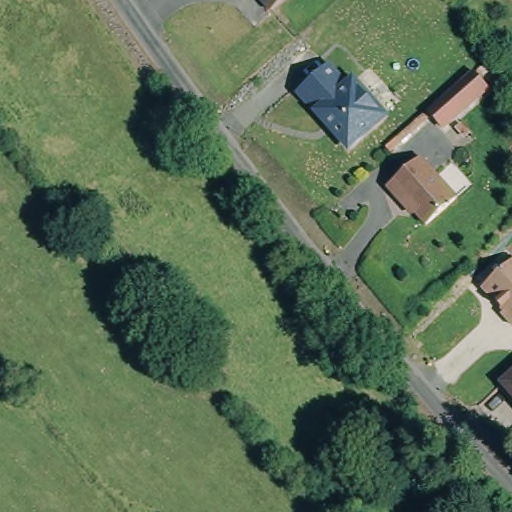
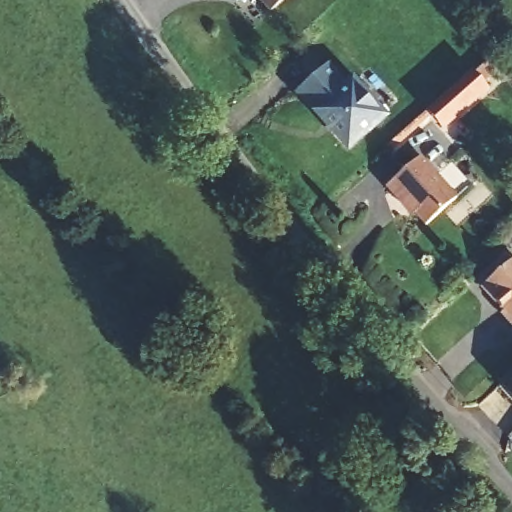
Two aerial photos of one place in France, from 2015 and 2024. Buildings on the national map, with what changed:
unchanged [(266,0),(288,0),(276,10),(266,0)]
unchanged [(324,63),(344,85),(350,80),(381,115),(346,145),(296,88),(324,63)]
unchanged [(467,68),(483,85),(439,125),(426,112),(385,150),(382,146),(423,109),(467,68)]
unchanged [(452,196),(422,221),(405,202),(400,205),(383,185),(417,156),(452,196)]
unchanged [(512,256),(512,323),(500,310),(503,308),(481,284),(512,256)]
unchanged [(500,382),(512,373),(512,396),(500,382)]

